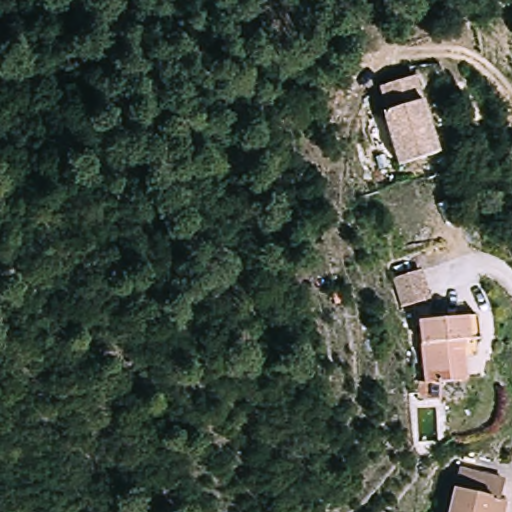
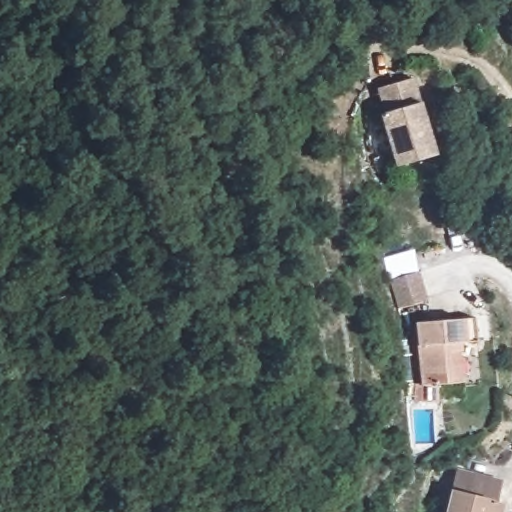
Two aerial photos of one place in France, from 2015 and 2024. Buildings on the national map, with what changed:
unchanged [(396,165),(382,111),(387,110),(380,85),(415,76),(435,154),(396,165)]
unchanged [(394,279),(421,271),(428,302),(401,309),(394,279)]
unchanged [(462,344),(464,353),(449,357),(453,386),(449,388),(451,399),(427,404),(423,387),(430,385),(418,323),(472,312),(478,342),(462,344)]
unchanged [(443,512),(452,468),(498,481),(494,500),(501,503),(499,512),(443,512)]

